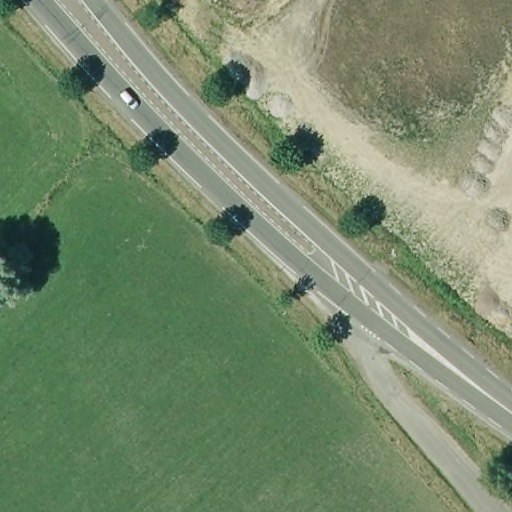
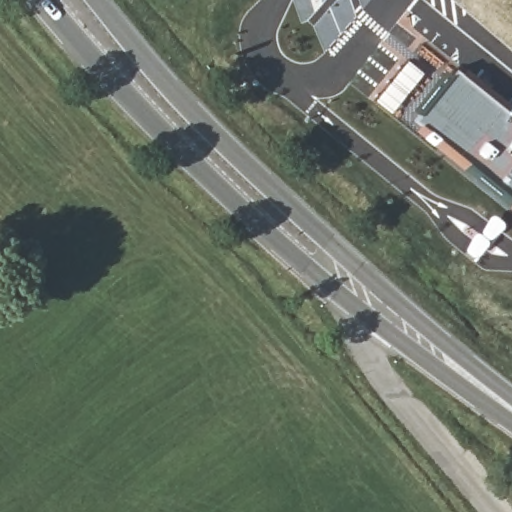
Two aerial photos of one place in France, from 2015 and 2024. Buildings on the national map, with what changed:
new [(434,92),(436,94),(454,69),(512,115),(512,195),(477,164),(415,120),(434,92)]
new [(507,206),(512,200),(512,210),(507,206)]

